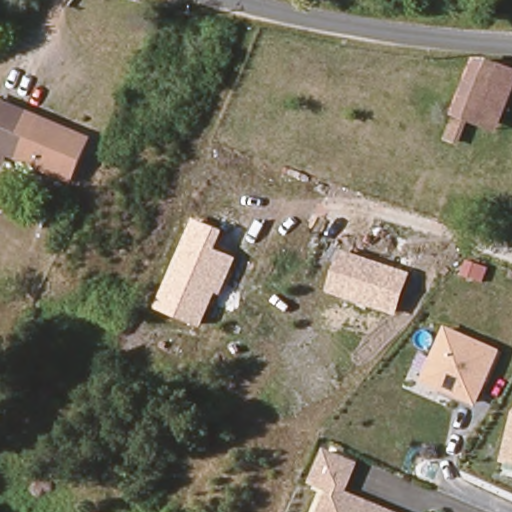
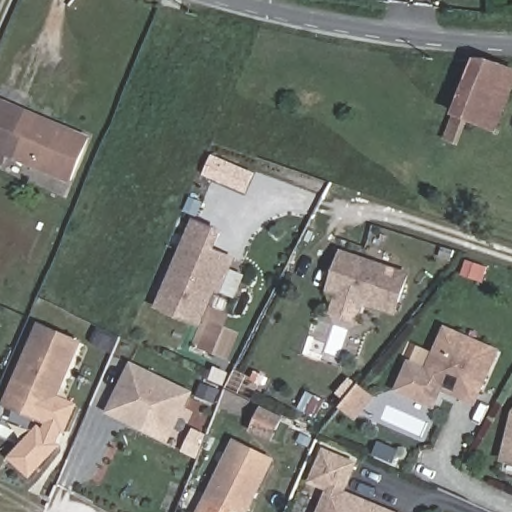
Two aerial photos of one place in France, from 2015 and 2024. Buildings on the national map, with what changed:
unchanged [(512,96),(496,134),(468,121),(459,144),(446,139),(475,61),(512,71),(512,96)]
unchanged [(84,137),(64,178),(1,152),(0,154),(0,101),(84,137)]
unchanged [(216,293),(202,327),(154,308),(193,218),(224,231),(216,249),(236,258),(220,295),(216,293)]
unchanged [(395,316),(326,292),(340,249),(411,273),(395,316)]
new [(58,400),(77,409),(59,447),(28,475),(9,458),(41,424),(2,406),(38,321),(84,340),(58,400)]
unchanged [(446,325),(502,349),(477,407),(421,382),(446,325)]
new [(168,443),(106,413),(131,361),(194,391),(168,443)]
new [(263,407),(282,416),(271,438),(253,430),(263,407)]
unchanged [(512,465),(501,462),(512,417),(512,465)]
new [(237,512),(206,496),(234,438),(276,457),(249,512),(237,512)]
unchanged [(309,485),(324,448),(359,463),(348,492),(397,512),(318,512),(326,492),(309,485)]

